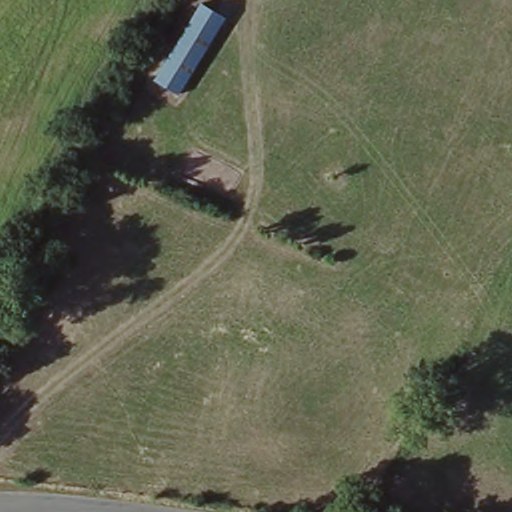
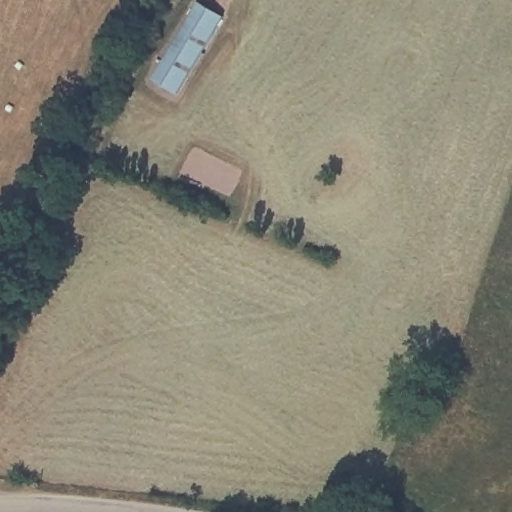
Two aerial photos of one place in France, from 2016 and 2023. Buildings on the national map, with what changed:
unchanged [(221,11),(177,90),(153,76),(194,0),(202,0),(221,11)]

